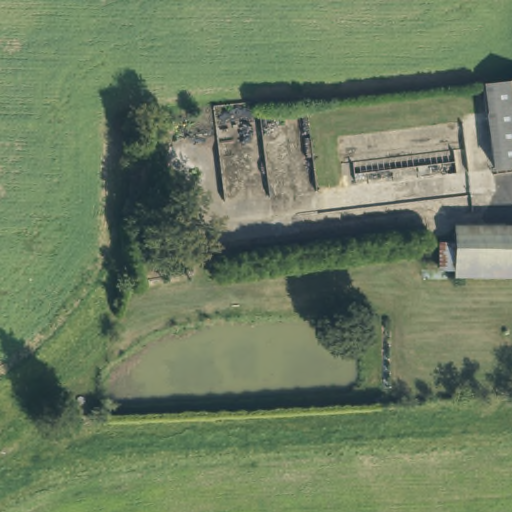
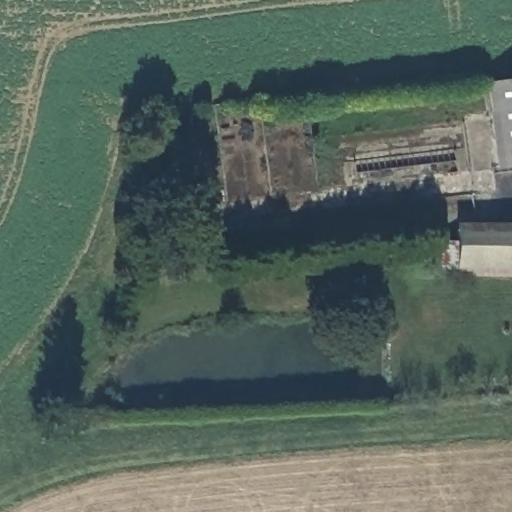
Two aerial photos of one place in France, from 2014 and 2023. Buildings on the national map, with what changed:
unchanged [(492,170),(483,84),(512,81),(512,167),(492,170)]
unchanged [(454,223),(512,223),(512,271),(454,271),(454,265),(438,265),(438,239),(454,239),(454,223)]

